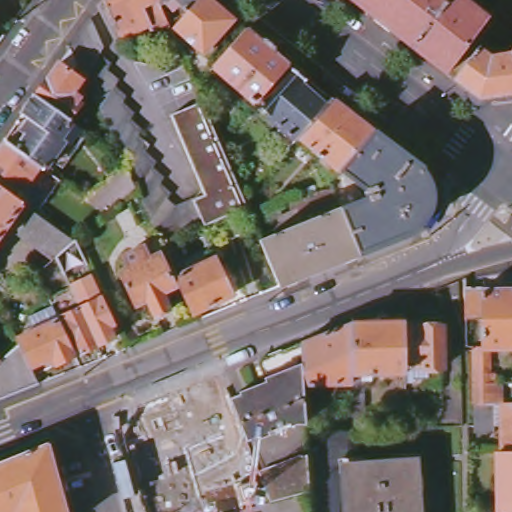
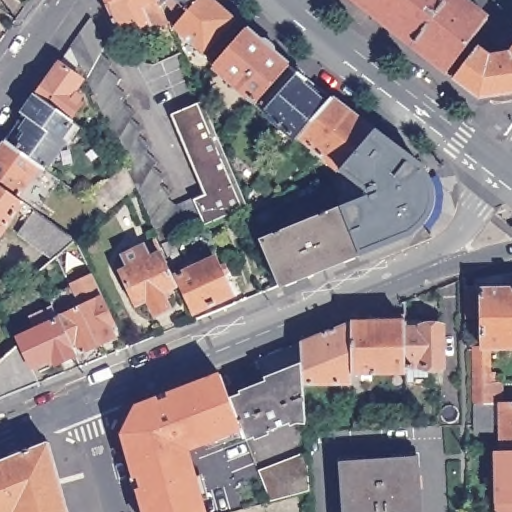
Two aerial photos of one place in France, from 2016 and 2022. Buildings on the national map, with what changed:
unchanged [(102,5),(106,0),(155,0),(167,28),(149,35),(146,30),(119,42),(102,5)]
unchanged [(167,28),(155,0),(204,0),(200,4),(192,13),(174,32),(171,35),(171,36),(167,28)]
unchanged [(192,13),(200,4),(204,0),(206,0),(233,23),(224,35),(228,39),(216,54),(213,51),(206,60),(174,32),(192,13)]
unchanged [(447,73),(352,0),(465,0),(489,18),(447,73)]
unchanged [(77,76),(87,83),(75,99),(86,107),(74,123),(41,99),(64,67),(74,52),(95,21),(109,50),(105,58),(116,67),(117,67),(112,75),(124,83),(119,91),(131,100),(132,100),(127,108),(139,116),(134,124),(146,133),(142,141),(154,150),(149,157),(161,166),(157,173),(168,181),(168,182),(164,189),(175,197),(175,198),(172,204),(182,211),(197,203),(209,230),(167,248),(137,185),(107,213),(92,198),(129,166),(82,68),(77,76)]
unchanged [(289,69),(256,107),(215,71),(249,34),(289,69)]
unchanged [(496,55),(507,55),(510,57),(512,55),(512,95),(480,99),(455,79),(479,47),(493,58),(496,55)]
unchanged [(325,97),(320,102),(327,107),(316,119),(297,141),(295,143),(255,109),(256,107),(289,69),(325,97)]
unchanged [(77,125),(67,142),(70,144),(50,172),(45,169),(21,152),(31,138),(25,134),(32,123),(27,119),(41,99),(74,123),(77,125)]
unchanged [(338,176),(297,141),(316,119),(327,107),(331,101),(374,134),(340,174),(338,176)]
unchanged [(175,119),(207,107),(225,149),(249,204),(252,211),(209,230),(197,203),(203,199),(209,195),(175,119)]
unchanged [(369,196),(340,174),(374,134),(415,166),(422,172),(430,186),(434,206),(427,223),(409,237),(400,241),(360,257),(340,212),(367,200),(369,196)]
unchanged [(0,187),(0,161),(12,145),(21,152),(45,169),(22,202),(0,187)]
unchanged [(27,206),(0,247),(0,187),(22,202),(27,206)]
unchanged [(280,290),(260,243),(340,212),(360,257),(280,290)]
unchanged [(40,278),(59,263),(23,238),(39,214),(80,244),(92,269),(77,276),(84,291),(76,295),(72,286),(69,278),(45,289),(40,278)]
unchanged [(154,263),(164,258),(180,292),(167,298),(175,314),(159,322),(150,306),(140,311),(124,278),(133,273),(127,262),(148,252),(154,263)]
unchanged [(237,300),(197,318),(180,281),(220,262),(237,300)]
unchanged [(490,374),(495,374),(495,384),(474,384),(474,350),(482,351),(482,322),(466,322),(466,318),(465,291),(512,291),(512,351),(491,351),(490,374)]
unchanged [(80,307),(102,296),(115,324),(110,326),(115,337),(98,346),(80,354),(75,344),(71,346),(65,332),(59,320),(49,300),(47,298),(59,293),(69,313),(80,307)]
unchanged [(52,358),(32,368),(20,344),(19,340),(17,339),(27,334),(25,329),(36,324),(39,329),(59,320),(65,332),(71,346),(73,350),(76,356),(56,366),(52,358)]
unchanged [(352,323),(405,321),(406,328),(407,368),(407,372),(405,373),(362,373),(353,373),(353,362),(353,361),(352,340),(352,339),(352,323)]
unchanged [(352,323),(352,339),(352,340),(353,361),(353,362),(353,373),(354,397),(343,396),(342,383),(305,385),(302,342),(352,323)]
unchanged [(444,326),(445,368),(407,368),(406,328),(418,329),(419,326),(444,326)]
unchanged [(247,439),(245,433),(231,397),(267,384),(258,360),(302,342),(305,385),(307,420),(297,420),(247,439)]
unchanged [(20,344),(32,368),(40,383),(0,400),(0,361),(20,344)]
new [(204,512),(143,512),(122,434),(135,406),(220,373),(240,426),(187,450),(204,512)]
unchanged [(495,408),(495,434),(474,434),(474,428),(474,384),(495,384),(502,384),(502,408),(495,408)]
unchanged [(512,455),(502,455),(502,408),(512,408),(512,455)]
demolished [(212,432),(232,483),(182,503),(178,494),(172,496),(164,474),(169,472),(161,452),(212,432)]
unchanged [(68,512),(0,512),(0,462),(50,442),(68,512)]
unchanged [(312,492),(272,503),(260,473),(309,454),(312,492)]
unchanged [(497,504),(497,455),(502,455),(512,455),(512,504),(502,504),(497,504)]
unchanged [(420,461),(423,512),(347,512),(344,467),(420,461)]
unchanged [(502,504),(512,504),(512,512),(498,512),(497,504),(502,504)]

